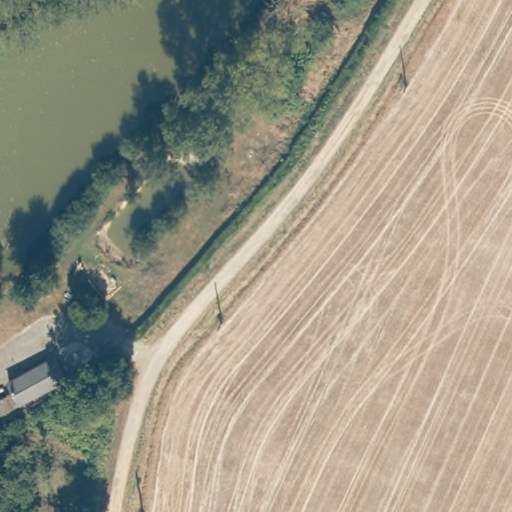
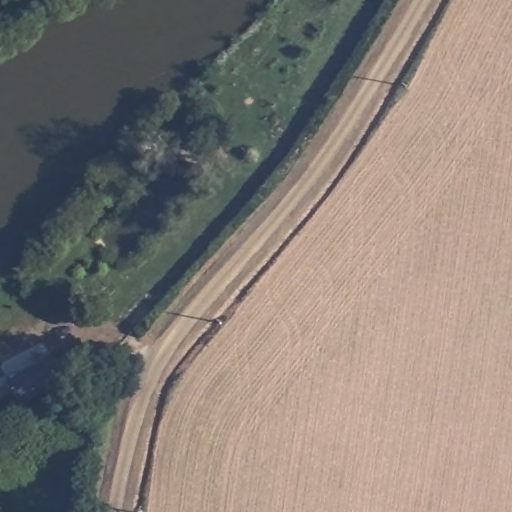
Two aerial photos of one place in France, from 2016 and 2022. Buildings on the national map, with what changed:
unchanged [(2,372),(45,349),(57,371),(0,402),(0,387),(9,383),(2,372)]

